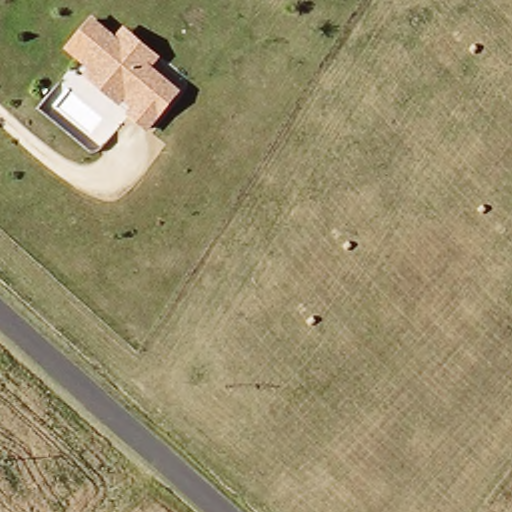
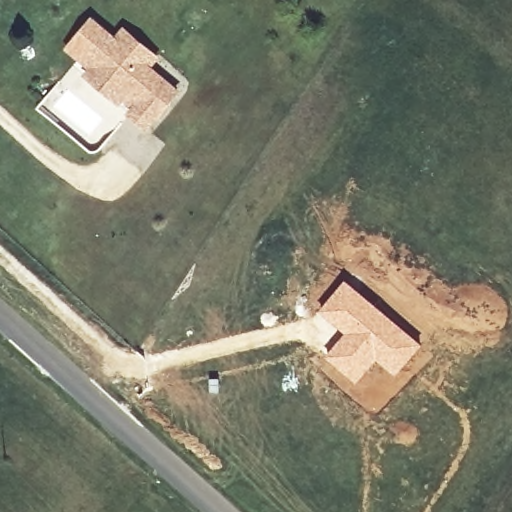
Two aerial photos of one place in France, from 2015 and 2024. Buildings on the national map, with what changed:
unchanged [(120,75),(115,80),(100,67),(104,64),(75,39),(95,17),(123,40),(128,35),(150,55),(146,60),(179,90),(149,126),(133,111),(137,106),(145,94),(120,75)]
unchanged [(137,106),(126,96),(122,99),(88,72),(95,65),(70,45),(75,39),(104,64),(100,67),(115,80),(120,75),(145,94),(137,106)]
new [(345,277),(422,344),(395,376),(377,360),(357,382),(325,356),(342,334),(317,312),(345,277)]

